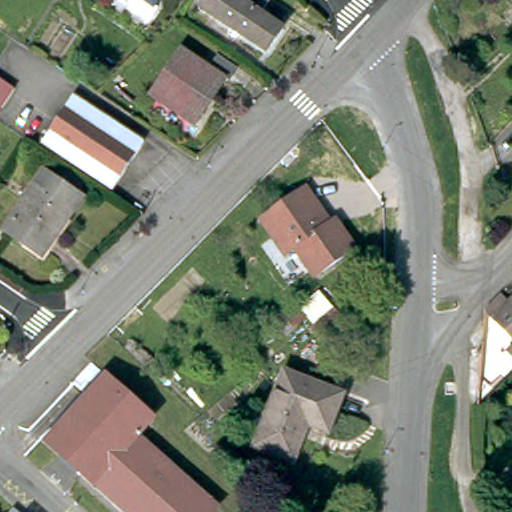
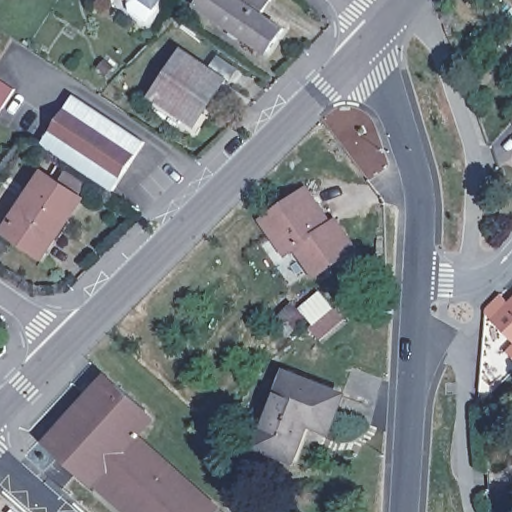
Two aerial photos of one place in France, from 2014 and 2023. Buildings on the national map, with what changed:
unchanged [(150,5),(143,0),(154,0),(150,5)]
unchanged [(270,2),(259,19),(281,33),(265,57),(195,11),(202,0),(266,0),(270,2)]
unchanged [(185,52),(225,80),(195,122),(155,96),(185,52)]
unchanged [(0,108),(0,82),(12,90),(0,108)]
unchanged [(72,94),(142,141),(110,189),(40,143),(72,94)]
unchanged [(46,175),(83,199),(45,254),(9,230),(46,175)]
unchanged [(305,186),(317,202),(312,206),(325,226),(334,219),(355,245),(315,274),(295,247),(287,252),(262,216),(305,186)]
unchanged [(487,316),(484,312),(493,302),(496,305),(502,310),(512,300),(512,344),(487,316)]
unchanged [(507,353),(512,349),(512,358),(507,353)]
unchanged [(47,442),(90,395),(75,381),(92,363),(153,417),(137,435),(219,507),(214,512),(129,512),(95,482),(94,484),(47,442)]
unchanged [(286,372),(342,395),(327,431),(307,423),(292,458),(258,445),(286,372)]

